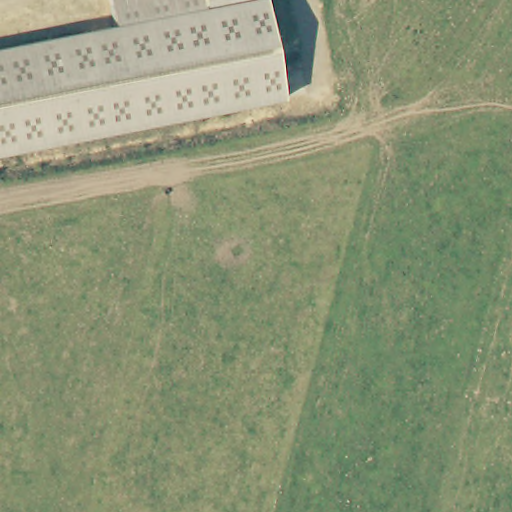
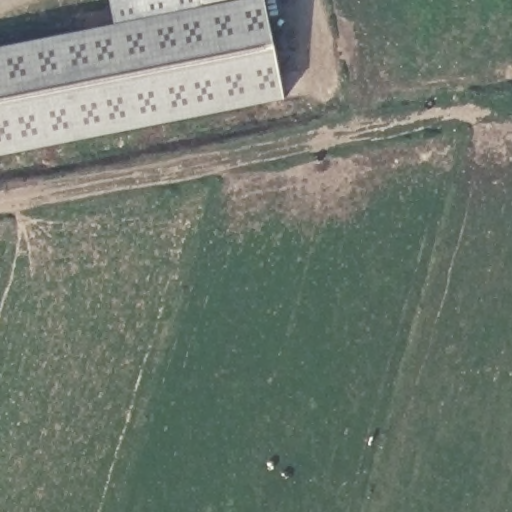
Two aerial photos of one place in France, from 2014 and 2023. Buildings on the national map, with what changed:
unchanged [(265,0),(285,101),(0,157),(0,49),(115,27),(110,0),(265,0)]

